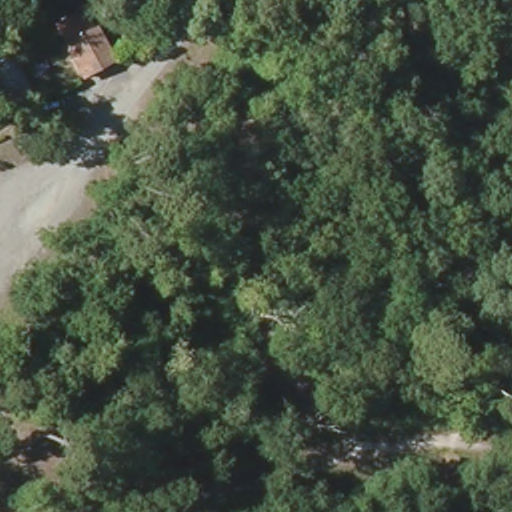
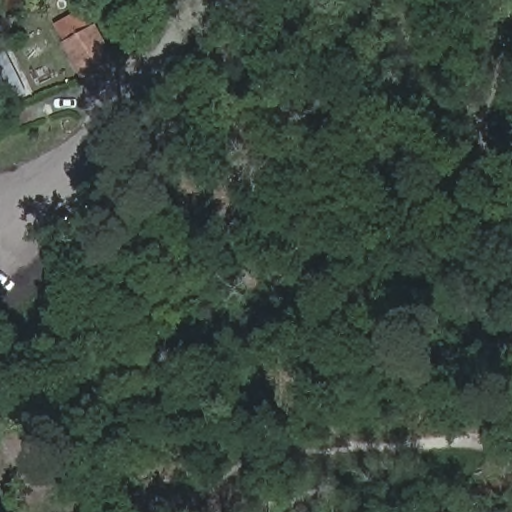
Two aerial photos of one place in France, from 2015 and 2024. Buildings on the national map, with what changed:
unchanged [(89,11),(107,57),(63,72),(49,29),(89,11)]

